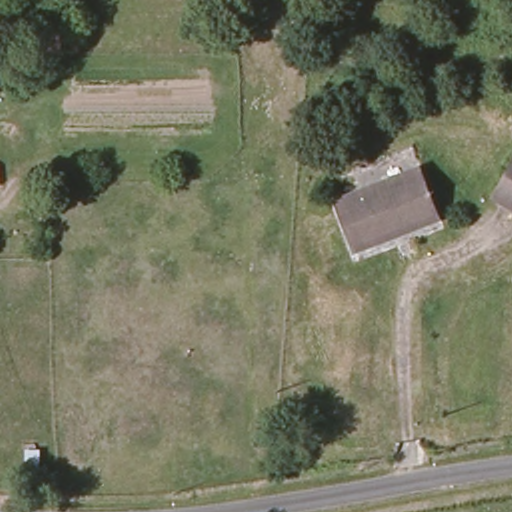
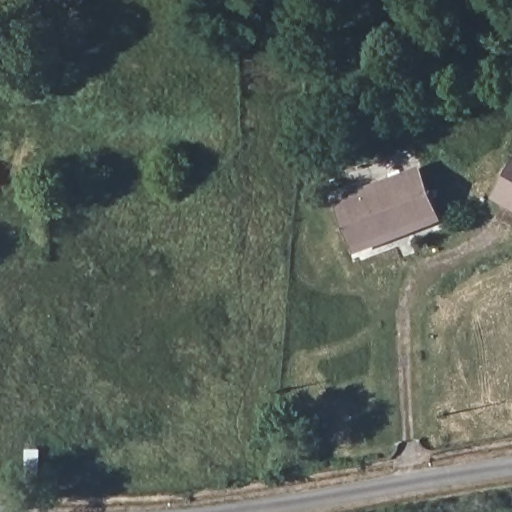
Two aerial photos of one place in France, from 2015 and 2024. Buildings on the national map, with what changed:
unchanged [(496,195),(512,166),(512,203),(496,195)]
unchanged [(420,170),(439,217),(357,251),(340,203),(420,170)]

